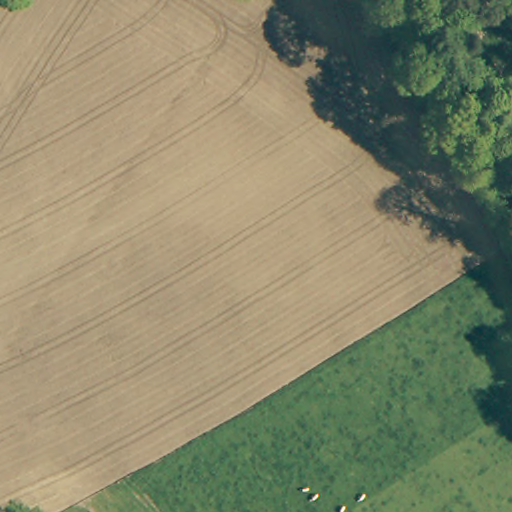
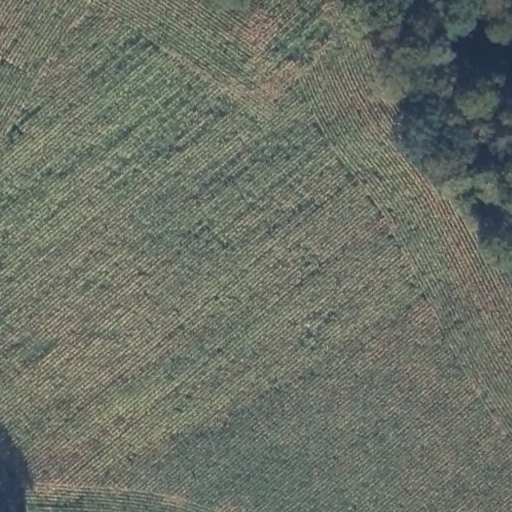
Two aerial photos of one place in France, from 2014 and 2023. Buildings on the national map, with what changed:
[]

